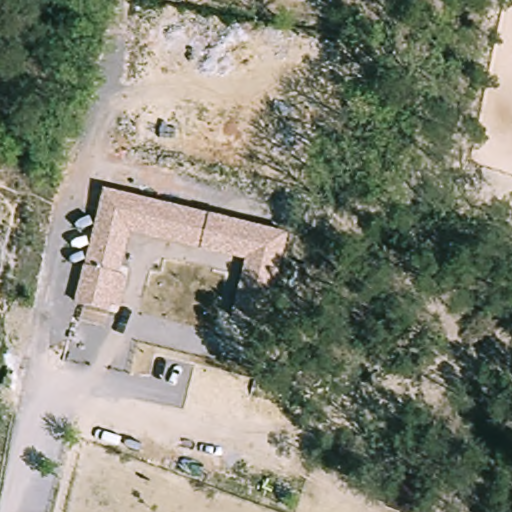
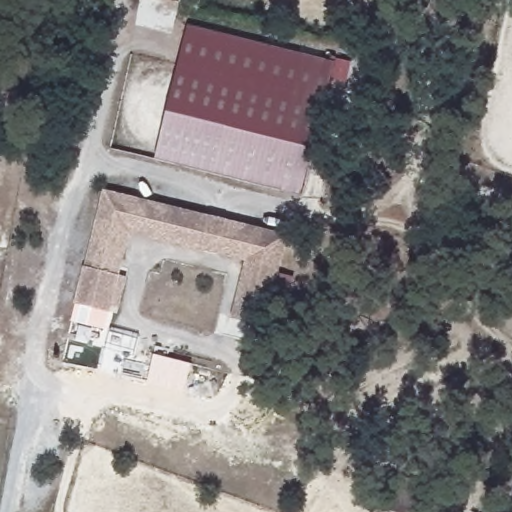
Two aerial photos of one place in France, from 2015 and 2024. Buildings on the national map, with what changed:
new [(155,158),(188,26),(332,61),(302,194),(155,158)]
unchanged [(292,235),(266,326),(234,315),(246,258),(132,232),(121,275),(128,277),(119,308),(112,306),(109,314),(104,329),(80,322),(83,306),(76,302),(85,265),(106,187),(292,235)]

